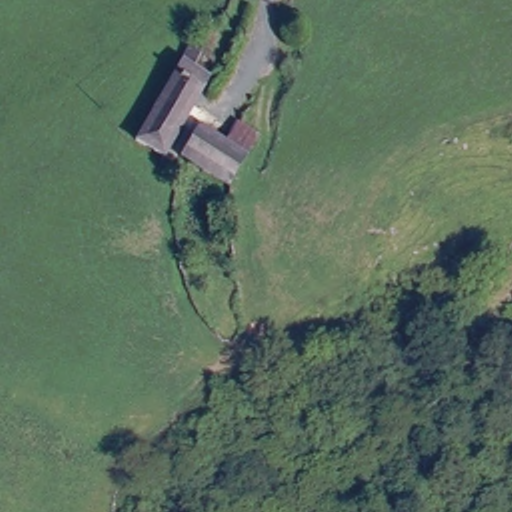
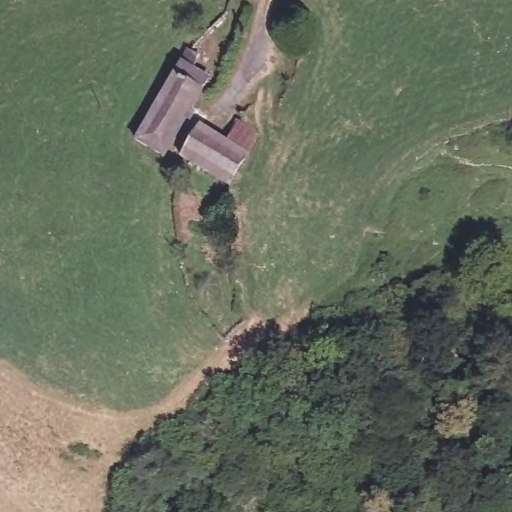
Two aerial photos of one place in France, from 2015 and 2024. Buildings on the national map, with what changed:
unchanged [(138,142),(187,51),(202,61),(195,77),(206,83),(166,158),(138,142)]
unchanged [(197,129),(227,144),(238,123),(259,136),(245,159),(229,186),(181,158),(197,129)]

